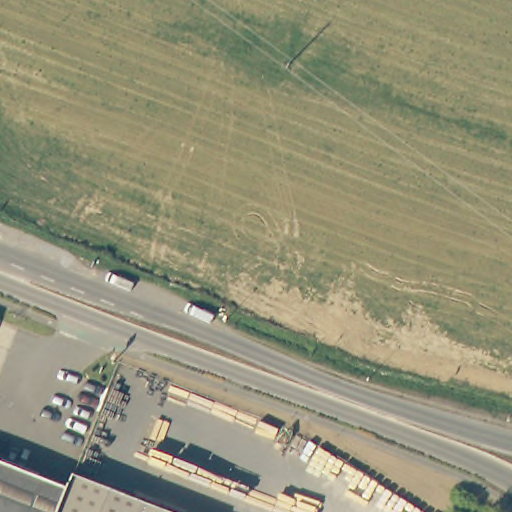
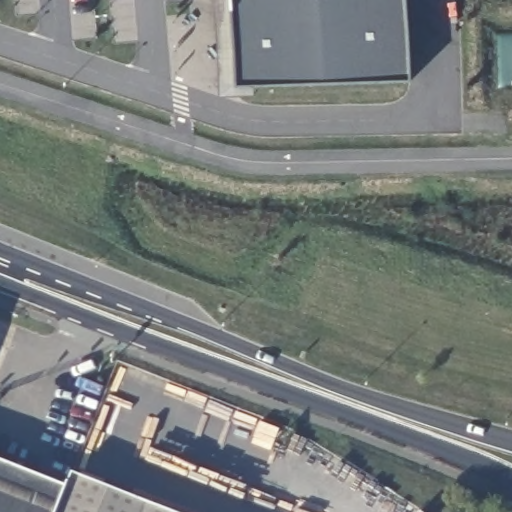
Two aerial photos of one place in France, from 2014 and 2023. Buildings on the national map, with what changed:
new [(255,85),(254,96),(220,97),(214,0),(405,0),(411,80),(255,85)]
unchanged [(0,460),(64,486),(68,487),(60,506),(58,512),(0,512),(0,460)]
unchanged [(68,487),(73,474),(170,512),(58,512),(60,506),(68,487)]

